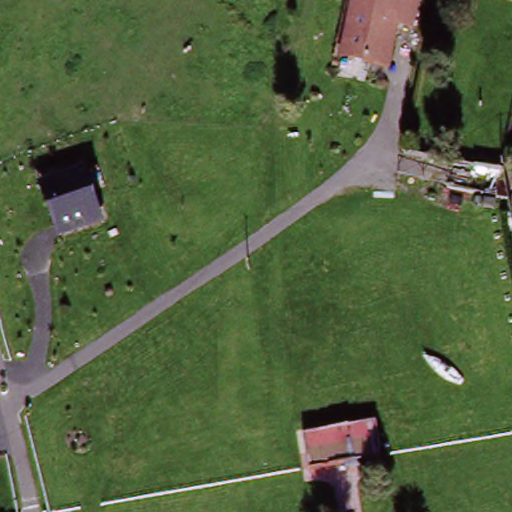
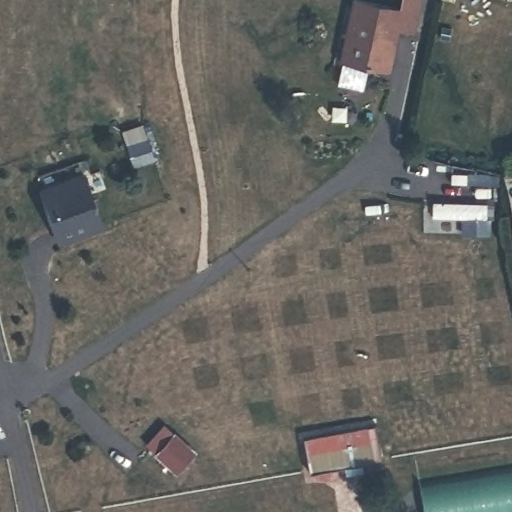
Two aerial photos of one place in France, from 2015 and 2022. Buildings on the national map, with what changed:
unchanged [(340,60),(352,0),(384,0),(396,1),(396,0),(421,0),(414,31),(399,30),(390,69),(340,60)]
unchanged [(89,171),(110,224),(64,242),(46,187),(89,171)]
unchanged [(304,475),(298,435),(375,421),(382,461),(304,475)]
new [(512,469),(512,512),(424,512),(420,486),(512,469)]

